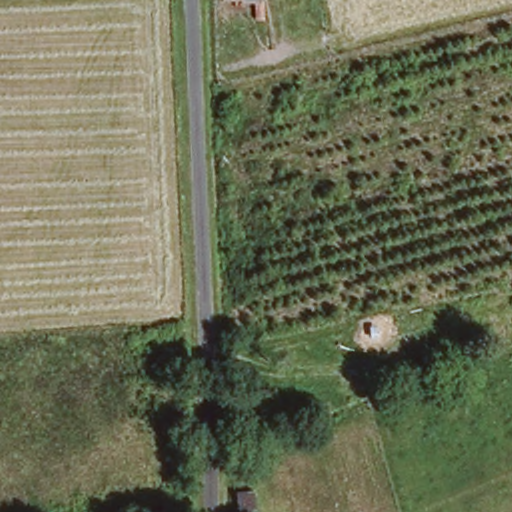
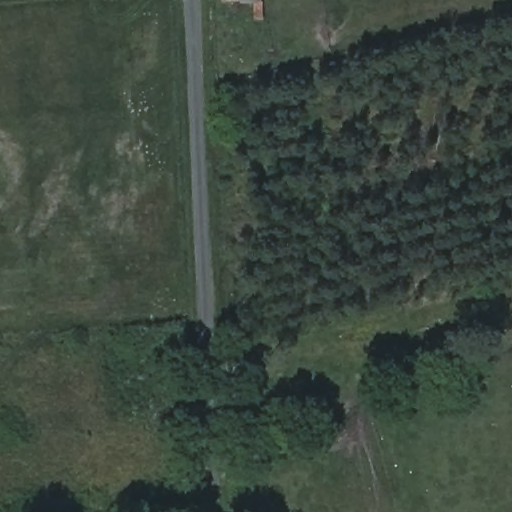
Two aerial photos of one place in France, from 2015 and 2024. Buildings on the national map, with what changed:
unchanged [(220,1),(220,0),(266,0),(266,5),(220,1)]

